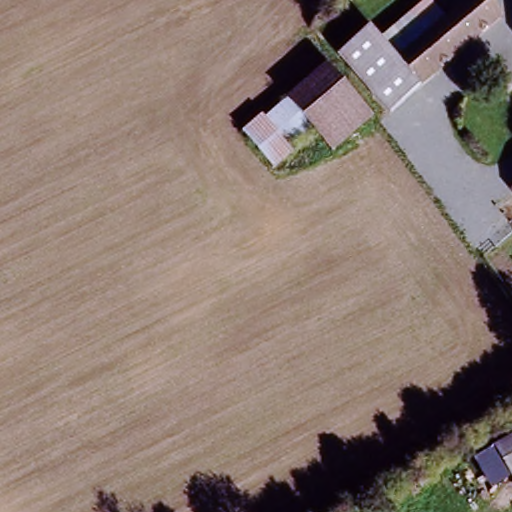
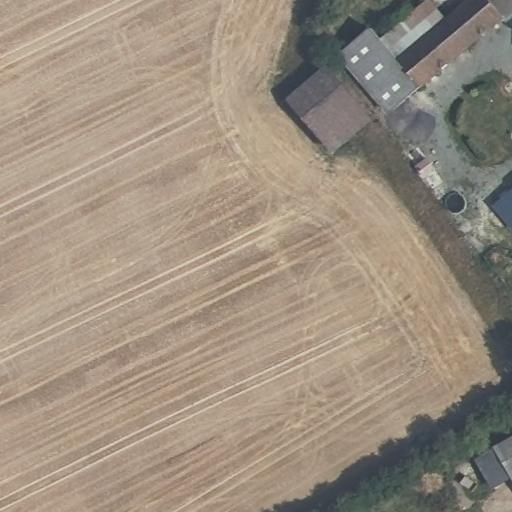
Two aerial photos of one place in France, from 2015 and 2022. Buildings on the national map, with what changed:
unchanged [(431,0),(447,22),(436,30),(397,59),(380,35),(426,0),(431,0)]
unchanged [(478,0),(495,0),(510,21),(458,60),(436,30),(447,22),(478,0)]
unchanged [(340,52),(375,27),(380,35),(397,59),(362,84),(340,52)]
unchanged [(458,60),(385,115),(362,84),(397,59),(436,30),(458,60)]
unchanged [(287,97),(325,67),(372,122),(331,154),(287,97)]
demolished [(273,170),(242,130),(262,112),(267,120),(280,104),(308,141),(273,170)]
unchanged [(512,185),(512,191),(508,188),(512,185)]
unchanged [(470,465),(512,440),(512,487),(512,486),(491,498),(470,465)]

